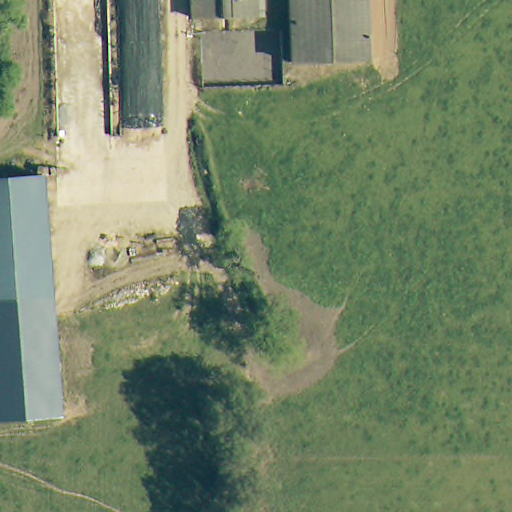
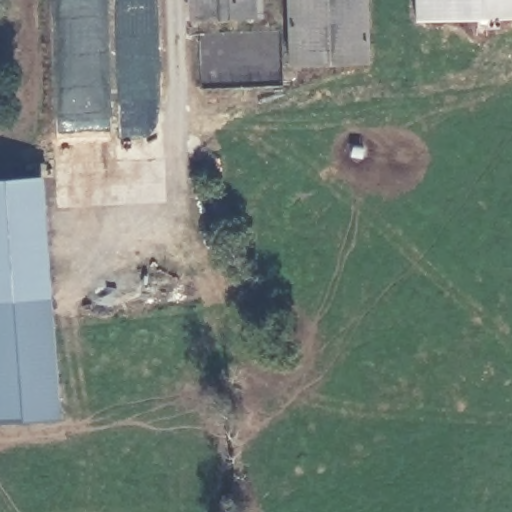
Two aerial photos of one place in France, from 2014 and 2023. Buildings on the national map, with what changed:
unchanged [(260,0),(260,13),(199,15),(198,0),(260,0)]
unchanged [(294,0),(369,0),(371,58),(295,59),(294,0)]
new [(415,20),(415,0),(512,0),(512,17),(415,20)]
unchanged [(52,294),(0,298),(0,176),(45,173),(52,294)]
unchanged [(61,416),(0,421),(0,298),(52,294),(61,416)]

